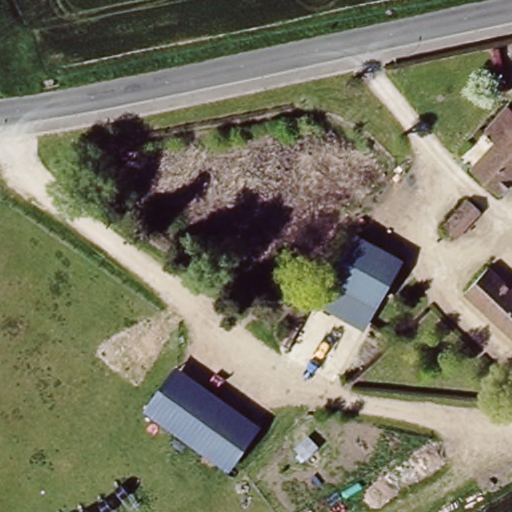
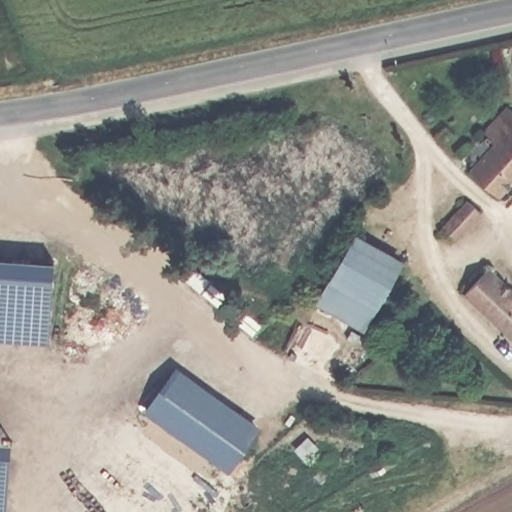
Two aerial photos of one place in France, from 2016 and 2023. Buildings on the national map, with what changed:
unchanged [(512,113),(512,183),(497,199),(471,172),(494,148),(482,136),(508,110),(512,113)]
unchanged [(477,209),(453,236),(512,291),(512,337),(462,290),(472,279),(441,249),(452,238),(441,225),(466,199),(477,209)]
unchanged [(403,264),(377,309),(334,284),(359,239),(403,264)]
new [(0,340),(0,257),(53,260),(49,344),(0,340)]
unchanged [(260,426),(231,470),(142,409),(174,364),(260,426)]
new [(0,440),(12,441),(8,512),(0,512),(0,440)]

